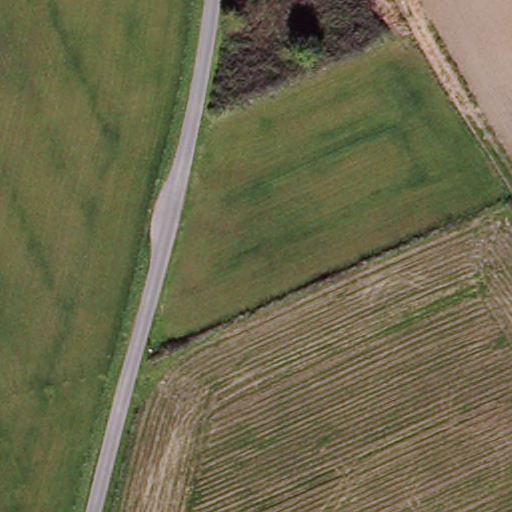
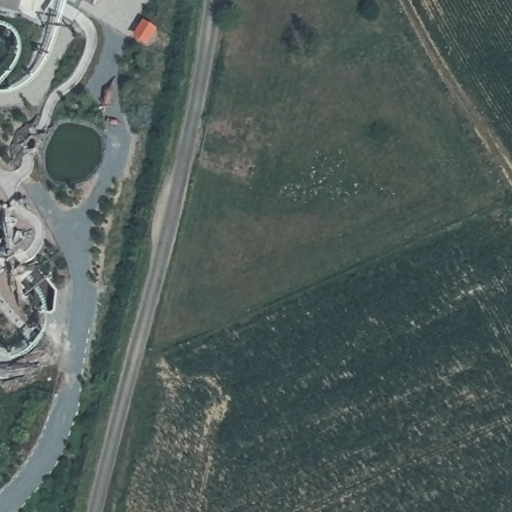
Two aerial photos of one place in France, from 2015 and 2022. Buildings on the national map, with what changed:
[]

